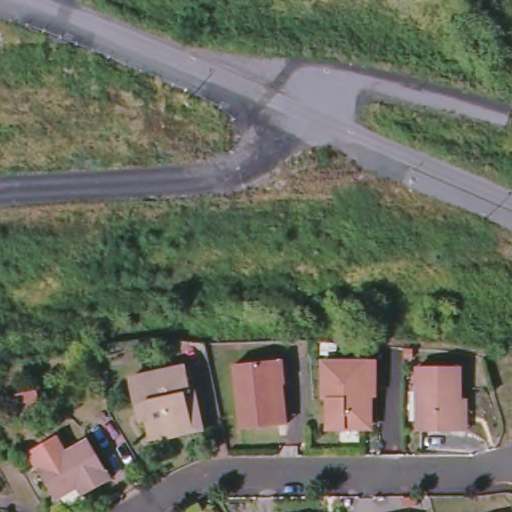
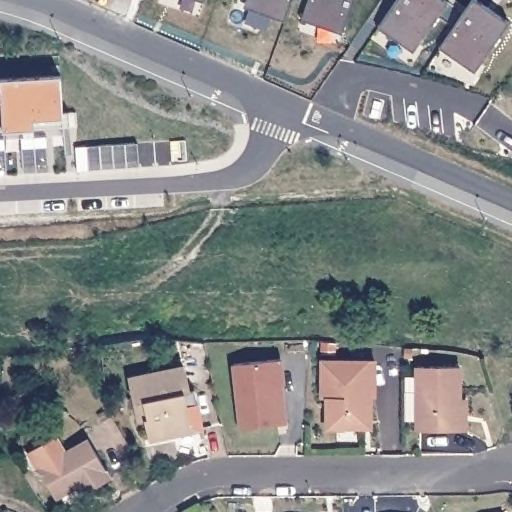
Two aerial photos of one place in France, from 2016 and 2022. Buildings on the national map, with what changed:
new [(285,21),(247,8),(250,0),(293,0),(285,21)]
new [(307,0),(354,0),(343,30),(321,22),(320,26),(300,19),(307,0)]
new [(397,0),(444,0),(447,2),(418,43),(415,41),(410,50),(377,28),(397,0)]
new [(474,73),(438,49),(472,0),(474,0),(508,23),(474,73)]
new [(60,76),(62,113),(69,112),(70,127),(0,131),(0,79),(60,76)]
unchanged [(279,425),(240,429),(233,364),(272,360),(275,382),(282,381),(286,424),(279,425)]
unchanged [(375,429),(345,428),(327,428),(327,399),(322,398),(322,361),(370,361),(370,389),(375,389),(375,429)]
unchanged [(138,402),(133,377),(187,366),(192,390),(197,389),(205,426),(175,432),(175,434),(153,438),(149,418),(142,419),(138,402)]
unchanged [(417,431),(417,366),(460,366),(460,398),(465,398),(465,431),(460,431),(417,431)]
unchanged [(56,495),(38,463),(30,449),(58,433),(66,447),(89,434),(111,474),(92,485),(83,490),(78,482),(56,495)]

